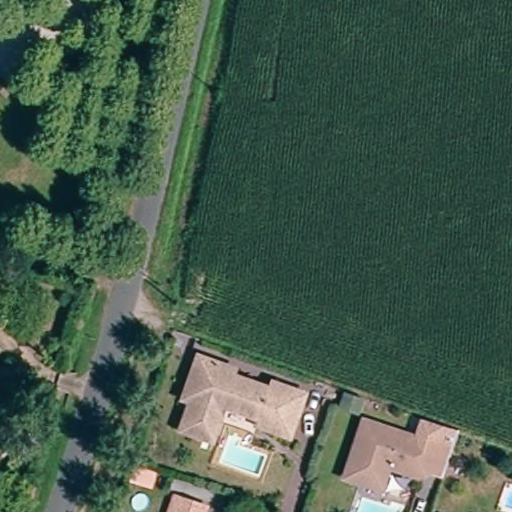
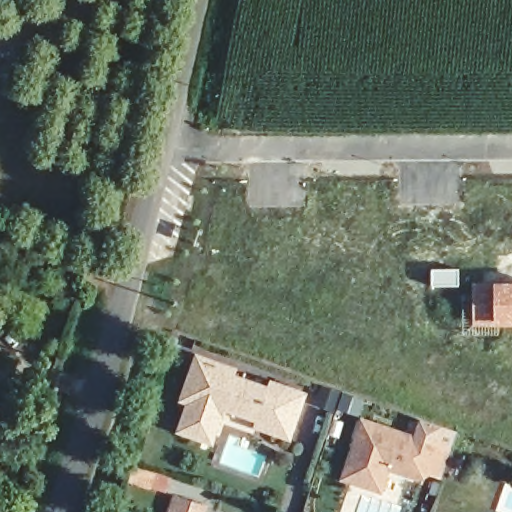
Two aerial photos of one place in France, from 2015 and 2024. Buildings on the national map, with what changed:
new [(512,281),(512,325),(494,325),(472,325),(473,283),(495,281),(512,281)]
unchanged [(292,429),(227,408),(216,445),(181,433),(190,400),(178,397),(194,355),(304,393),(292,429)]
unchanged [(444,470),(429,464),(428,466),(419,471),(390,461),(382,483),(341,470),(360,411),(453,443),(444,470)]
unchanged [(174,493),(209,502),(206,512),(168,512),(174,493)]

